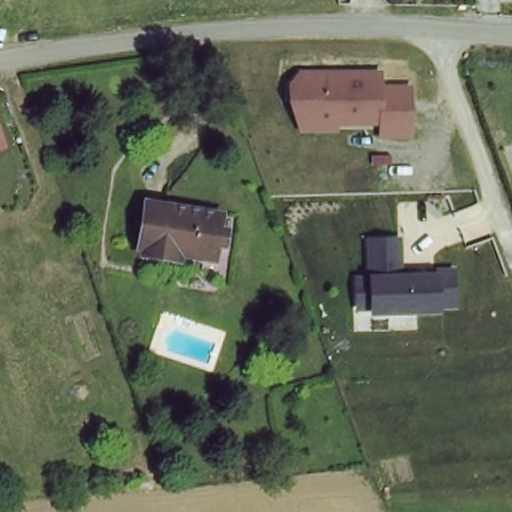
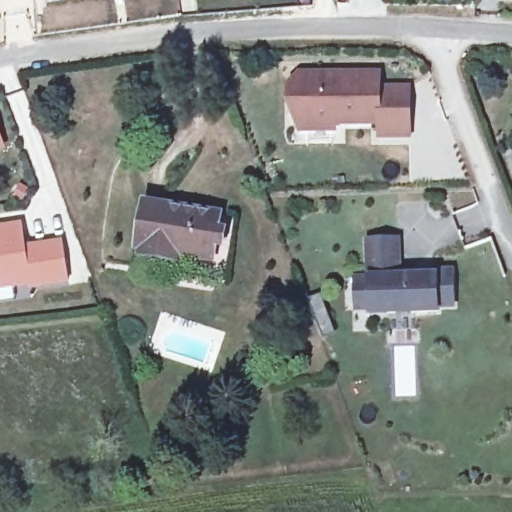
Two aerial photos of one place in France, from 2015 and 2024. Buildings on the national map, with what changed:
unchanged [(412,142),(377,142),(377,129),(338,128),(338,134),(300,135),(284,104),(284,72),(382,72),(382,85),(413,85),(412,142)]
unchanged [(0,131),(7,150),(0,152),(0,131)]
unchanged [(225,227),(230,231),(227,249),(221,247),(220,262),(170,257),(169,262),(147,258),(147,252),(142,251),(151,207),(227,219),(225,227)]
new [(30,250),(67,246),(72,283),(32,288),(31,286),(0,290),(0,231),(27,227),(30,250)]
unchanged [(439,313),(440,317),(368,319),(367,312),(353,312),(350,277),(367,276),(365,240),(400,239),(401,273),(418,273),(418,270),(460,270),(462,314),(439,313)]

